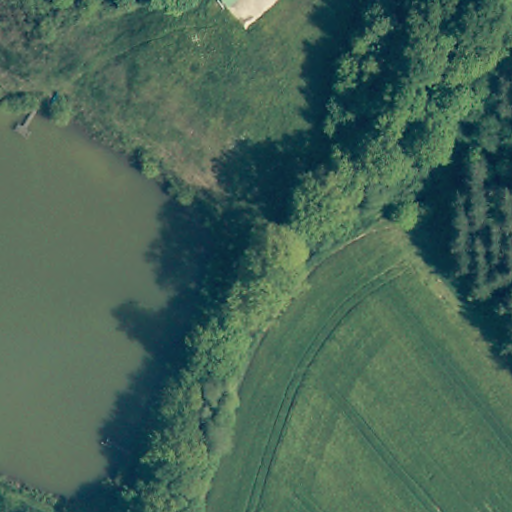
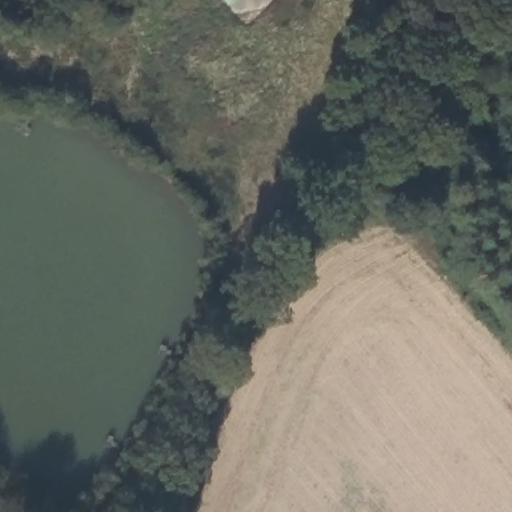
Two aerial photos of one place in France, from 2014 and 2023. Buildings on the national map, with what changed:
unchanged [(230,6),(224,0),(236,0),(230,6)]

